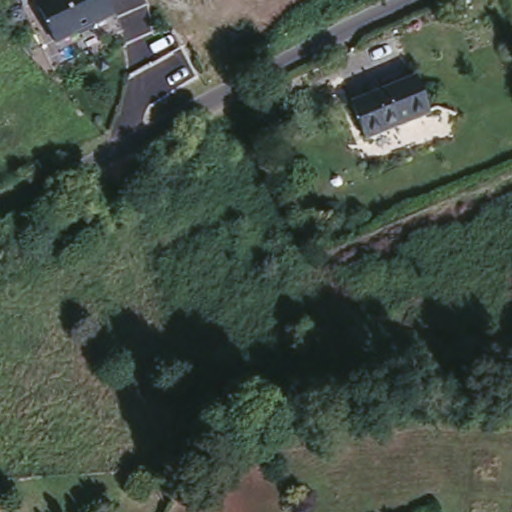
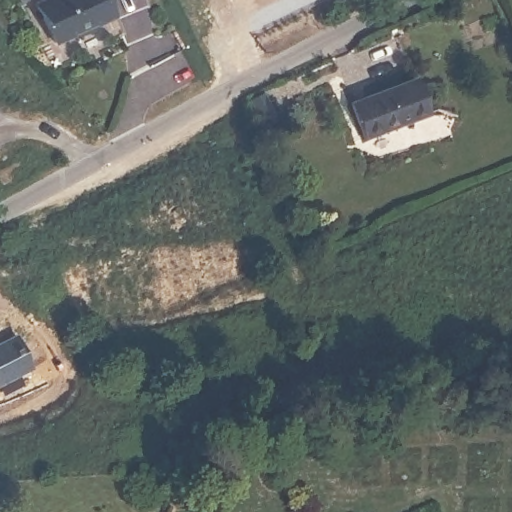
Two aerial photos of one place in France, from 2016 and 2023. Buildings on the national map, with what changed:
unchanged [(40,0),(108,0),(113,17),(51,46),(35,2),(40,0)]
unchanged [(419,74),(437,111),(377,140),(358,102),(419,74)]
new [(28,371),(0,386),(0,342),(12,335),(28,371)]

